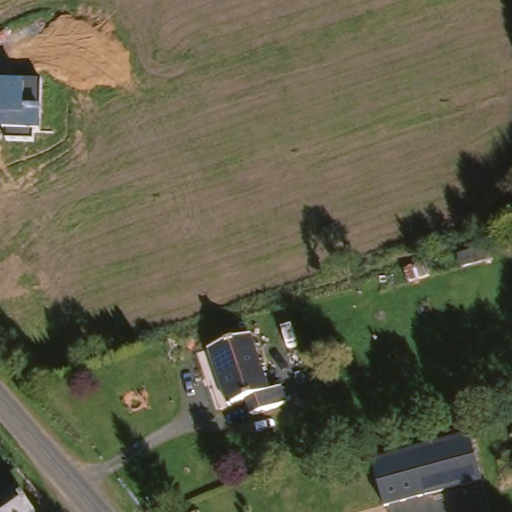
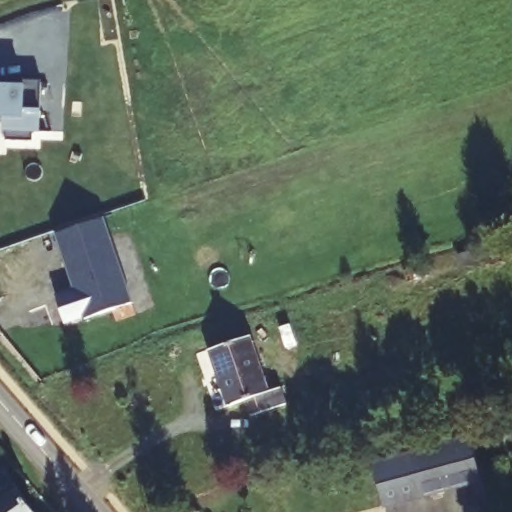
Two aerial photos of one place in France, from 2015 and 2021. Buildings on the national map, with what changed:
unchanged [(33,142),(6,141),(7,131),(2,131),(2,124),(0,124),(0,84),(4,84),(4,78),(41,80),(41,109),(40,133),(34,134),(33,142)]
new [(131,303),(84,319),(83,318),(64,323),(55,295),(73,289),(55,234),(103,218),(131,303)]
unchanged [(276,377),(287,369),(296,381),(268,403),(260,393),(241,407),(204,358),(241,329),(276,377)]
unchanged [(481,484),(384,509),(373,468),(470,442),(481,484)]
unchanged [(1,467),(15,459),(46,512),(0,512),(0,465),(1,467)]

